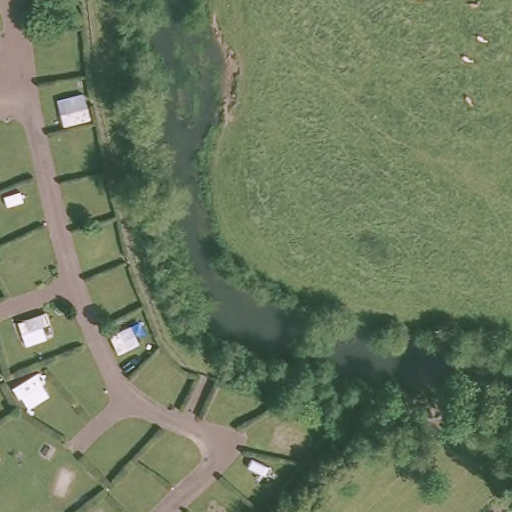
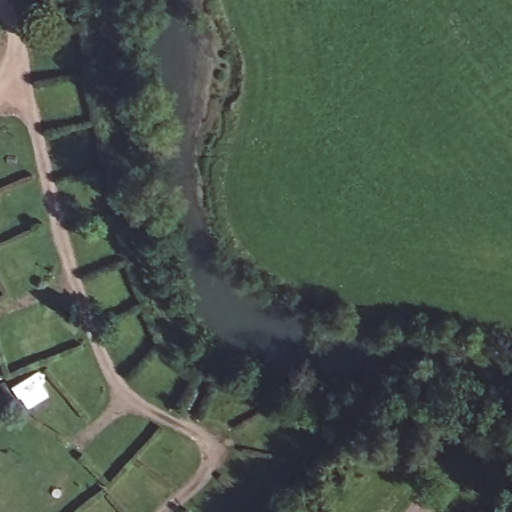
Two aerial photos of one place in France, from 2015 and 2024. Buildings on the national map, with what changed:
[]

